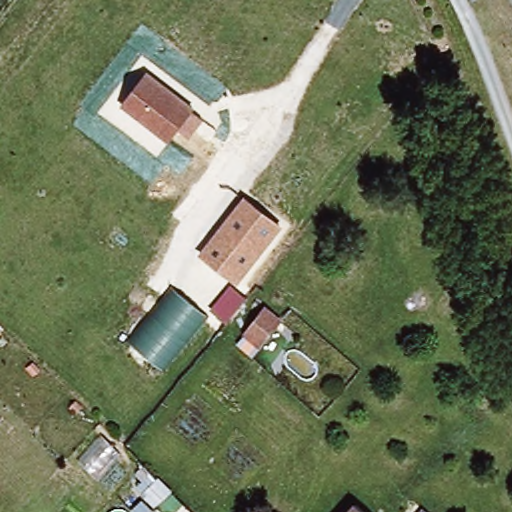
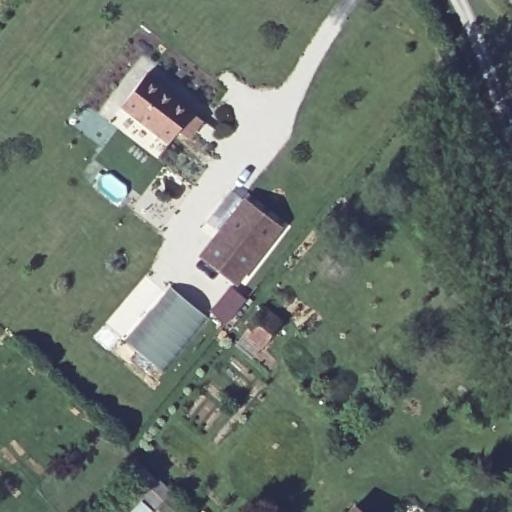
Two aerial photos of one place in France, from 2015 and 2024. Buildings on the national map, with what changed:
unchanged [(199,109),(171,145),(120,105),(148,70),(199,109)]
unchanged [(238,286),(202,257),(248,202),(283,231),(238,286)]
unchanged [(206,317),(162,371),(125,340),(170,287),(206,317)]
unchanged [(286,321),(263,351),(243,336),(268,306),(286,321)]
unchanged [(361,512),(348,512),(355,506),(361,512)]

